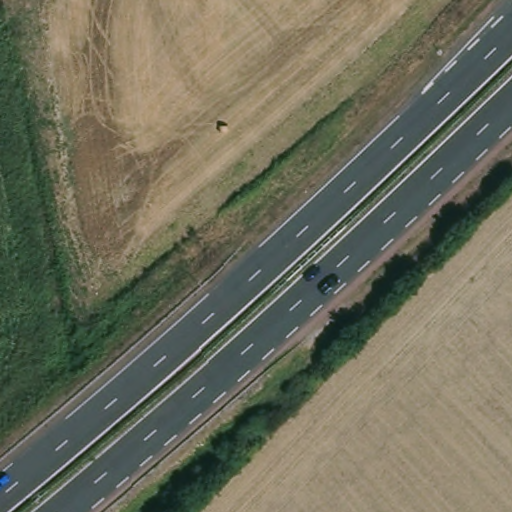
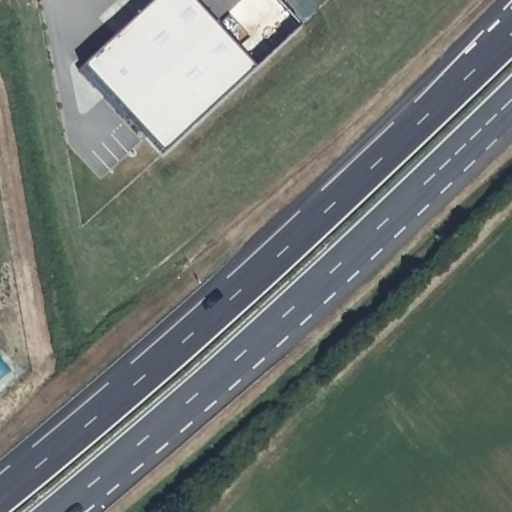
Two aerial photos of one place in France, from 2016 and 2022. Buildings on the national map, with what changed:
new [(161,0),(188,0),(257,74),(252,79),(164,160),(83,72),(161,0)]

